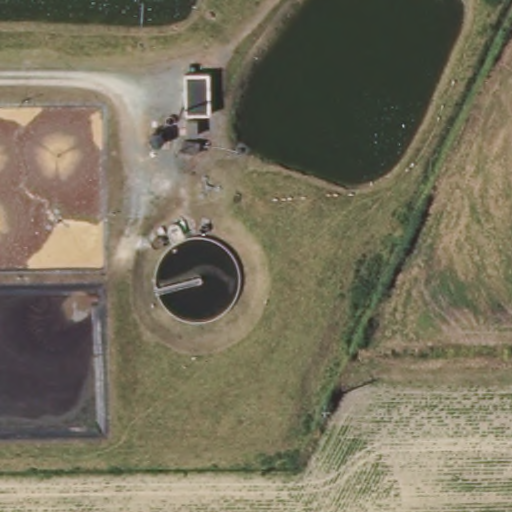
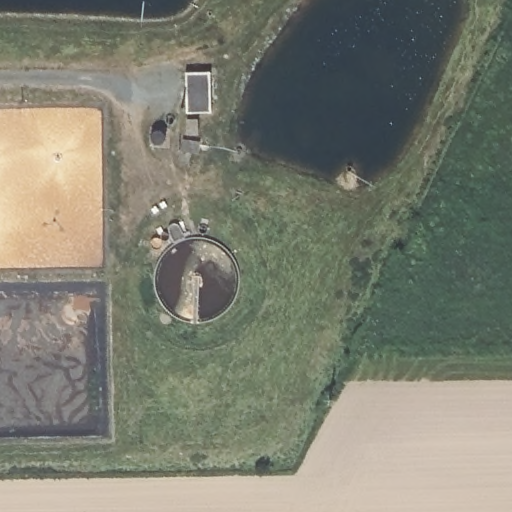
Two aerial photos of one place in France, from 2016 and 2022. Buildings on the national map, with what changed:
unchanged [(189,112),(187,74),(211,73),(211,111),(189,112)]
unchanged [(195,136),(204,139),(201,149),(192,147),(195,136)]

